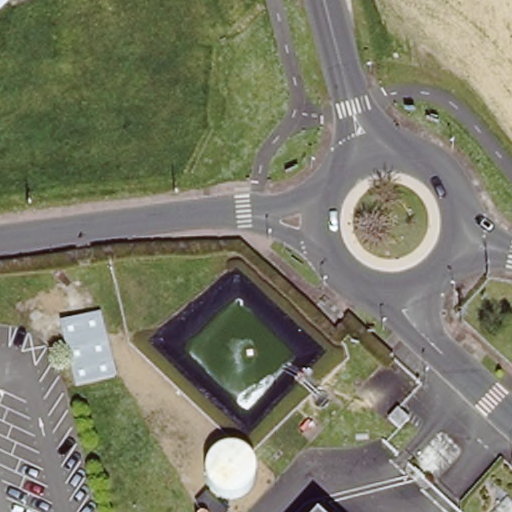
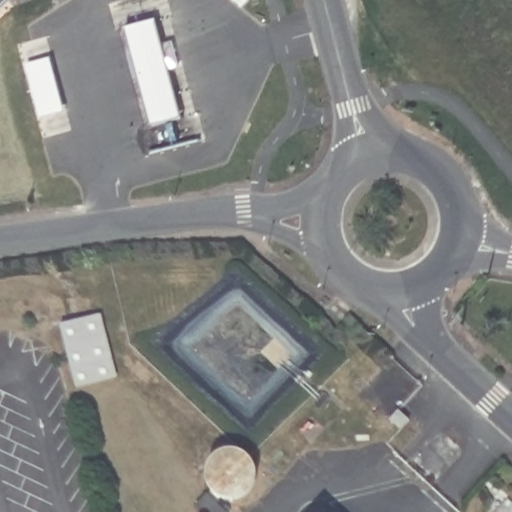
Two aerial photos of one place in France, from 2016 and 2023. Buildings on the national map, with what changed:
unchanged [(0,0),(7,0),(7,4),(0,10),(0,0)]
new [(153,127),(128,26),(158,20),(184,120),(153,127)]
new [(40,119),(25,65),(54,58),(67,111),(40,119)]
unchanged [(117,376),(80,386),(64,327),(77,324),(100,317),(110,355),(117,376)]
unchanged [(390,416),(397,410),(406,418),(397,427),(388,418),(390,416)]
unchanged [(209,478),(208,468),(212,459),(218,451),(227,447),(237,447),(247,451),(253,460),(256,469),(255,479),(250,487),(242,493),(232,495),(227,495),(218,505),(225,510),(223,512),(207,512),(197,502),(212,485),(209,478)]
unchanged [(512,498),(512,512),(498,512),(512,498)]

